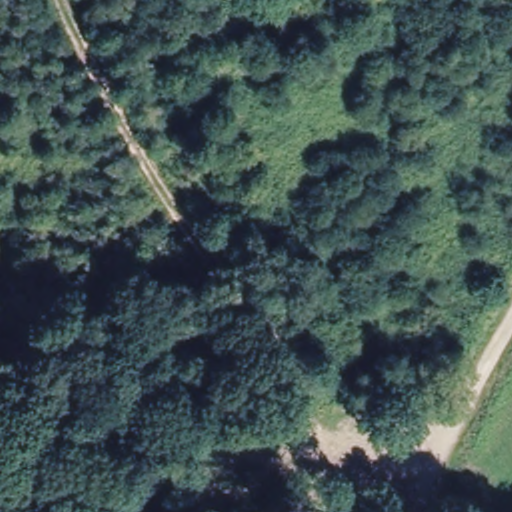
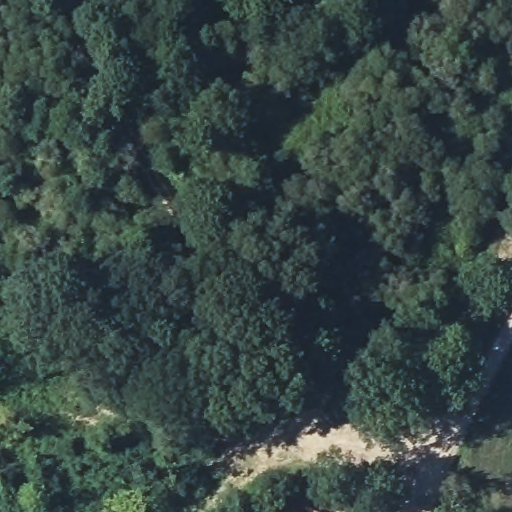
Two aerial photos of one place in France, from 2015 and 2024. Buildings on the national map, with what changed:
unchanged [(307,512),(307,510),(312,512),(307,512)]

